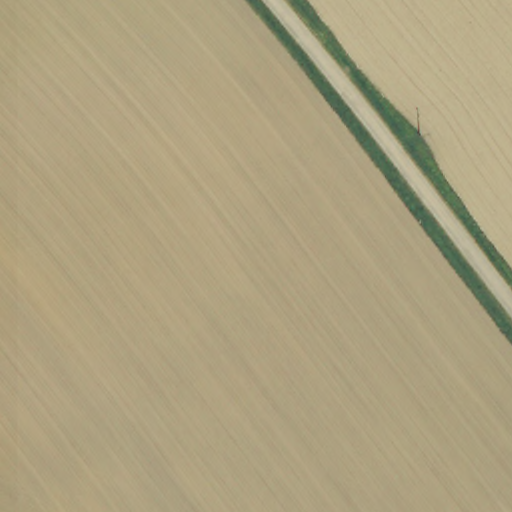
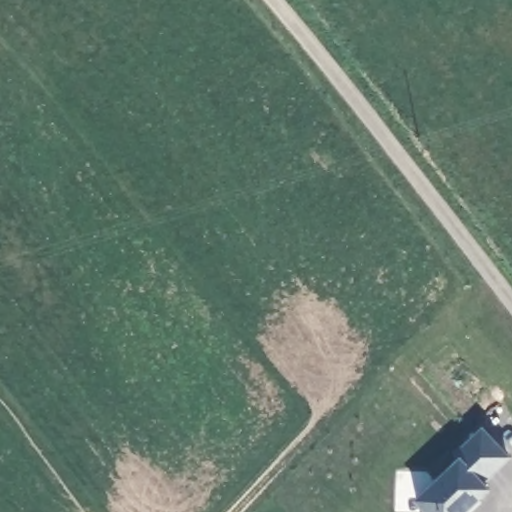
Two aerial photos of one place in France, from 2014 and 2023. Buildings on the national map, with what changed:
new [(452,458),(447,453),(474,428),(500,455),(474,480),(480,487),(469,497),(472,500),(459,512),(455,512),(454,511),(453,512),(423,512),(409,498),(452,458)]

